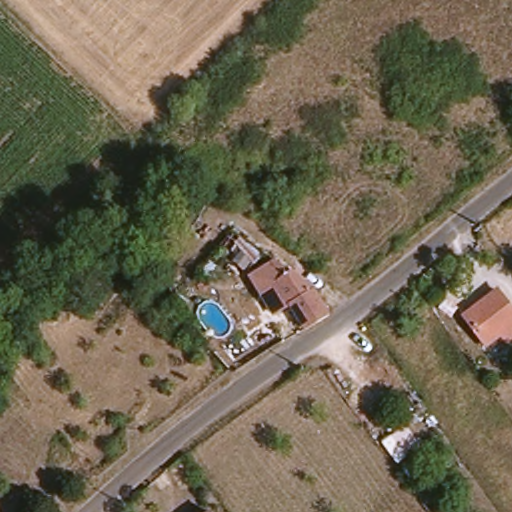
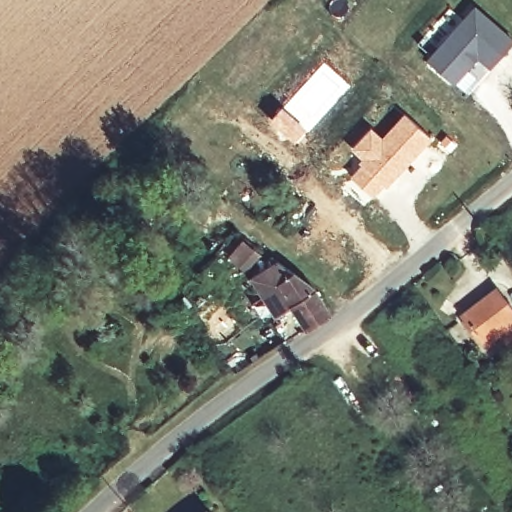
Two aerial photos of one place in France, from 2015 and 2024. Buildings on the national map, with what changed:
new [(489,69),(477,60),(454,84),(424,58),(473,4),(512,40),(512,42),(489,69)]
new [(322,61),(351,86),(308,132),(290,148),(264,123),(281,105),(322,61)]
new [(360,160),(348,148),(370,124),(381,134),(404,110),(433,137),(399,171),(369,199),(348,175),(360,160)]
unchanged [(251,248),(280,263),(297,273),(316,288),(333,315),(309,332),(291,307),(270,276),(259,286),(228,252),(241,239),(251,248)]
unchanged [(512,308),(512,344),(507,335),(484,351),(464,321),(503,294),(512,308)]

